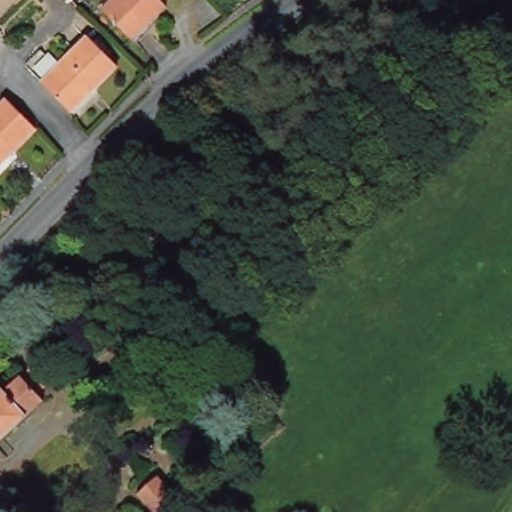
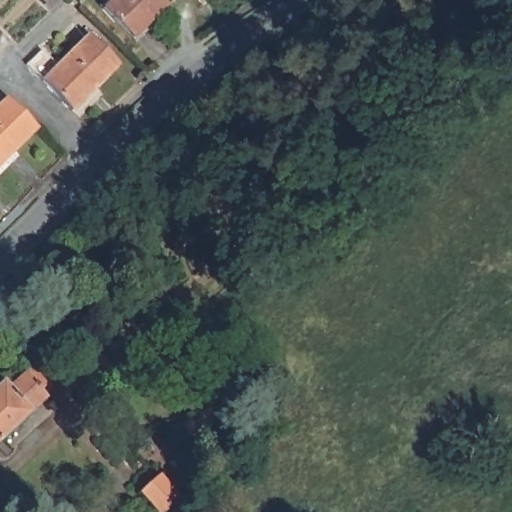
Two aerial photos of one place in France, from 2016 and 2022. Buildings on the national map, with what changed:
unchanged [(114,0),(161,0),(169,8),(135,41),(104,10),(114,0)]
unchanged [(87,35),(117,66),(72,109),(42,79),(87,35)]
unchanged [(34,122),(0,157),(0,105),(7,97),(34,122)]
unchanged [(44,355),(52,364),(54,365),(55,366),(45,370),(34,357),(41,353),(44,355)]
unchanged [(36,392),(41,398),(26,412),(31,418),(1,447),(0,448),(0,384),(3,387),(27,364),(45,383),(36,392)]
unchanged [(208,465),(203,469),(184,448),(205,429),(225,449),(222,453),(231,472),(221,480),(216,484),(208,465)]
unchanged [(153,484),(171,512),(123,512),(129,507),(153,484)]

